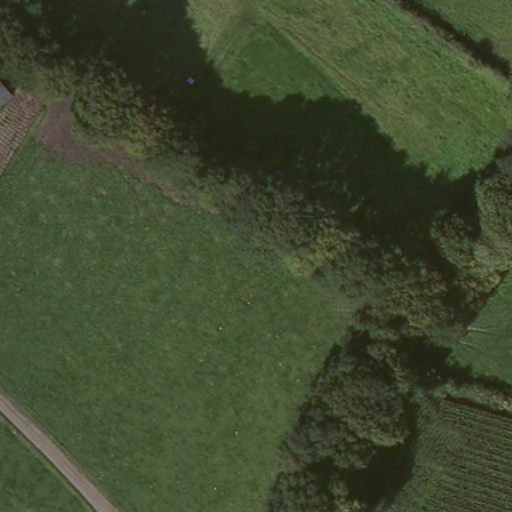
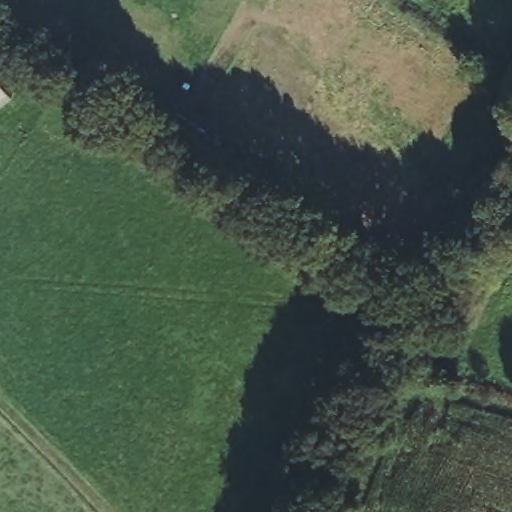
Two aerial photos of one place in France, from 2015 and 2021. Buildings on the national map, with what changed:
unchanged [(7,92),(0,97),(0,84),(7,92)]

